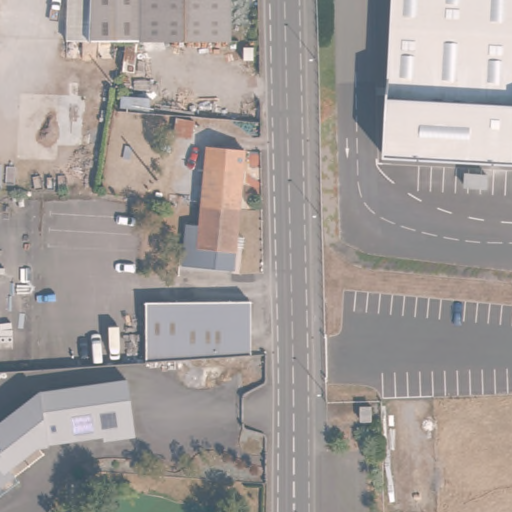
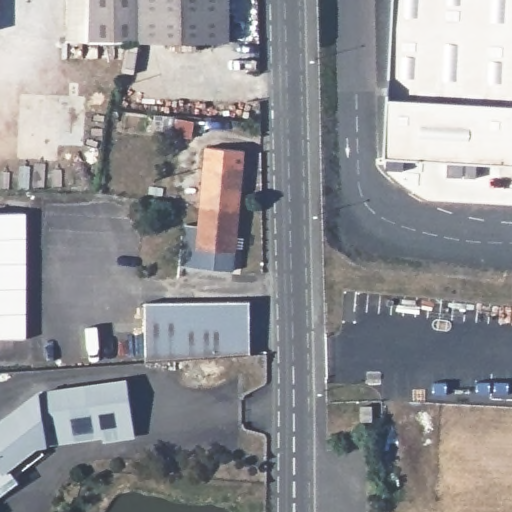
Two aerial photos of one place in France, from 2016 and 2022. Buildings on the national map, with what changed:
unchanged [(63,0),(88,0),(86,42),(61,40),(63,0)]
unchanged [(166,39),(124,40),(86,42),(88,0),(230,0),(232,36),(166,39)]
unchanged [(379,164),(387,0),(512,0),(512,169),(379,164)]
unchanged [(239,153),(242,210),(190,210),(188,157),(188,154),(239,153)]
unchanged [(242,210),(246,272),(194,273),(193,264),(180,264),(181,232),(191,232),(190,210),(242,210)]
new [(26,339),(0,339),(0,211),(25,211),(26,339)]
unchanged [(146,364),(144,305),(249,309),(249,356),(146,364)]
unchanged [(98,433),(31,442),(3,465),(6,469),(16,480),(0,492),(0,418),(35,391),(123,379),(129,433),(98,438),(98,433)]

